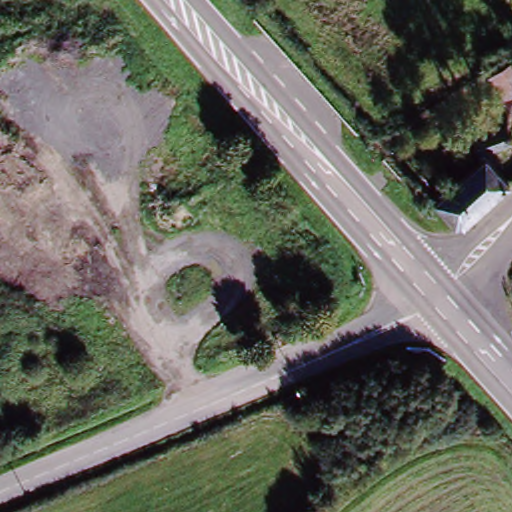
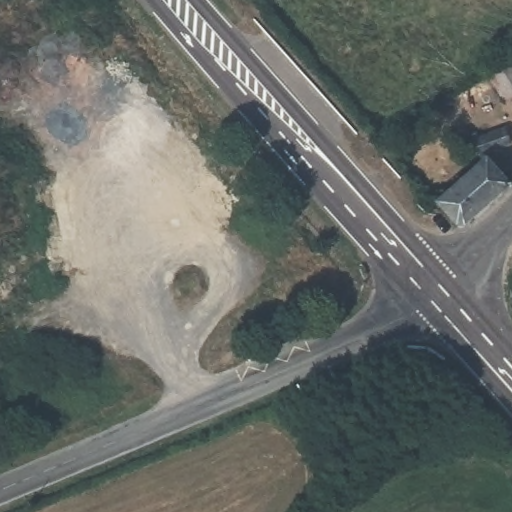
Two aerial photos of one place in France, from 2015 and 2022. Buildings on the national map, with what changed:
unchanged [(512,72),(512,90),(500,99),(487,81),(508,66),(512,72)]
unchanged [(485,170),(479,151),(507,142),(512,156),(512,161),(485,170)]
unchanged [(450,229),(439,215),(435,209),(485,170),(500,188),(450,229)]

